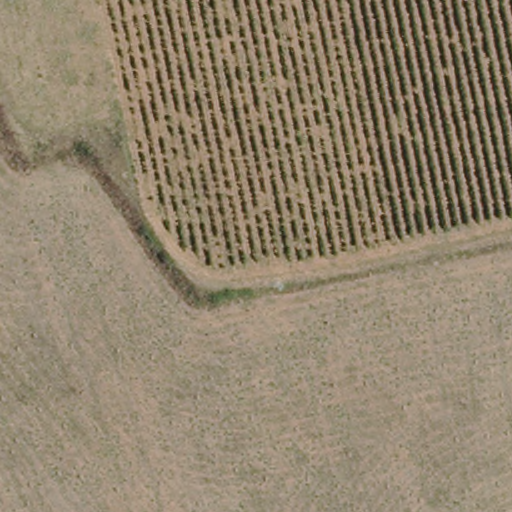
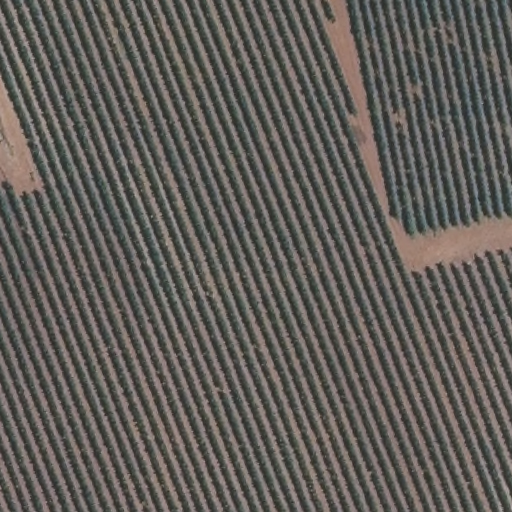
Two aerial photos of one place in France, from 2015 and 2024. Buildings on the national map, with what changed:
[]

